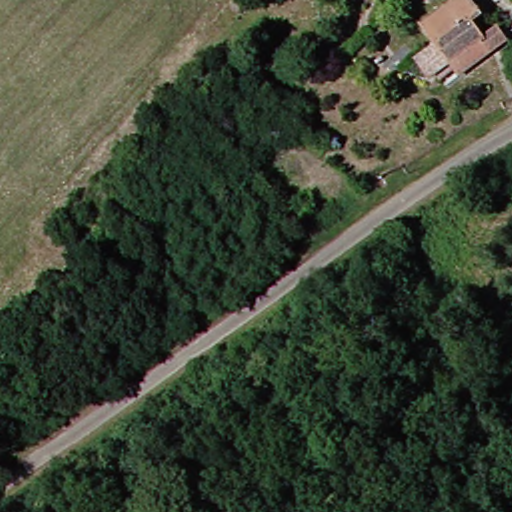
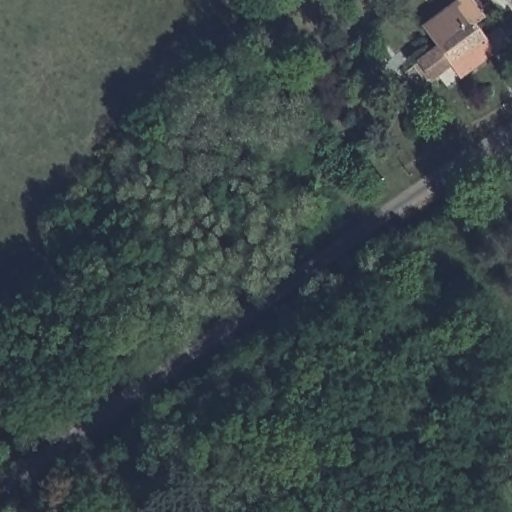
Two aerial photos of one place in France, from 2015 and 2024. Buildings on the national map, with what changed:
unchanged [(450,74),(437,83),(428,70),(441,59),(430,44),(416,26),(450,0),(465,0),(477,15),(467,22),(476,34),(489,24),(501,41),(452,76),(450,74)]

